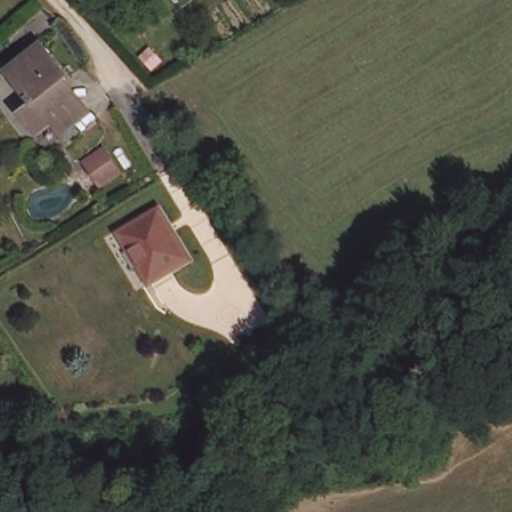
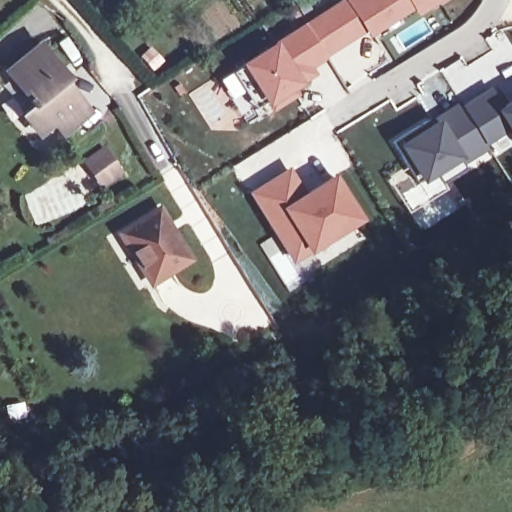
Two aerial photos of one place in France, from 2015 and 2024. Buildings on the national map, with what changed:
new [(369,35),(364,28),(309,65),(314,73),(303,81),(294,87),(299,95),(274,111),(268,105),(264,100),(256,107),(233,72),(243,64),(241,61),(338,0),(437,0),(417,12),(413,5),(369,35)]
unchanged [(79,114),(60,129),(51,117),(39,126),(23,107),(35,97),(10,66),(41,41),(67,73),(63,76),(68,81),(88,106),(79,114)]
new [(484,140),(488,146),(461,162),(463,166),(445,179),(438,170),(422,180),(421,176),(416,179),(393,141),(459,101),(462,103),(489,84),(501,105),(512,98),(512,132),(508,126),(484,140)]
unchanged [(120,170),(103,183),(88,161),(105,150),(120,170)]
new [(306,190),(334,172),(361,216),(309,249),(292,262),(249,192),(291,165),(306,190)]
unchanged [(189,258),(151,281),(121,232),(159,209),(189,258)]

